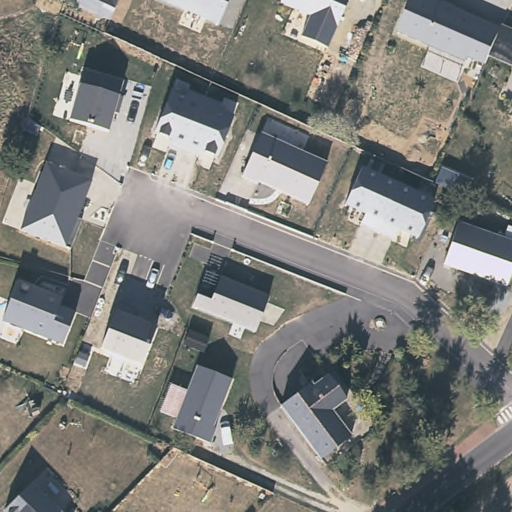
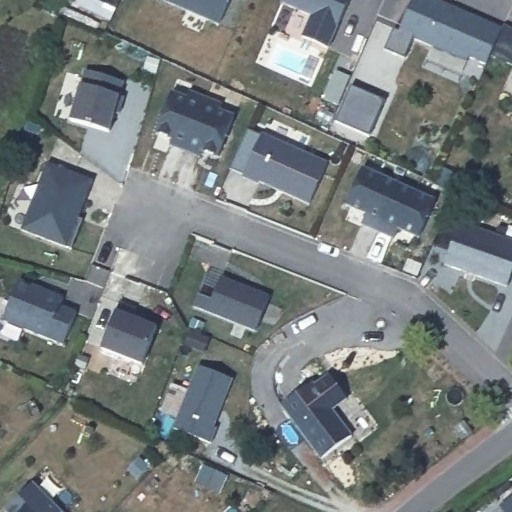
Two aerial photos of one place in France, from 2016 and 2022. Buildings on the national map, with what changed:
unchanged [(91,0),(116,0),(109,16),(88,8),(91,0)]
unchanged [(156,0),(232,0),(219,30),(156,0)]
unchanged [(350,0),(330,50),(300,38),(309,17),(282,2),(283,0),(350,0)]
unchanged [(493,50),(487,65),(457,51),(451,54),(409,35),(403,32),(416,0),(439,0),(455,7),(476,16),(502,28),(512,31),(512,64),(492,55),(493,50)]
unchanged [(119,99),(123,100),(118,115),(114,115),(108,130),(71,120),(81,85),(85,69),(123,79),(119,99)]
new [(369,137),(336,122),(342,108),(322,100),(335,71),(350,76),(347,85),(352,85),(385,100),(369,137)]
unchanged [(217,157),(199,151),(198,155),(170,145),(172,138),(155,131),(167,88),(188,95),(189,90),(219,103),(217,110),(232,115),(217,157)]
unchanged [(307,206),(241,177),(259,134),(325,165),(307,206)]
unchanged [(78,217),(81,219),(69,249),(65,247),(23,230),(48,163),(91,180),(78,217)]
unchanged [(434,201),(418,239),(397,230),(394,239),(360,224),(363,215),(344,205),(361,167),(434,201)]
unchanged [(512,245),(512,278),(509,289),(441,261),(454,220),(512,245)]
unchanged [(213,292),(219,276),(269,297),(256,330),(193,304),(200,290),(213,292)]
unchanged [(63,298),(60,307),(75,312),(63,346),(1,320),(17,282),(63,298)]
unchanged [(157,323),(141,365),(96,345),(111,306),(157,323)]
unchanged [(233,380),(212,444),(171,427),(193,367),(233,380)]
unchanged [(327,467),(282,406),(314,382),(317,386),(331,375),(352,405),(337,415),(358,445),(327,467)]
unchanged [(9,511),(35,484),(63,512),(9,512),(9,511)]
unchanged [(500,503),(512,495),(512,512),(505,512),(500,503)]

